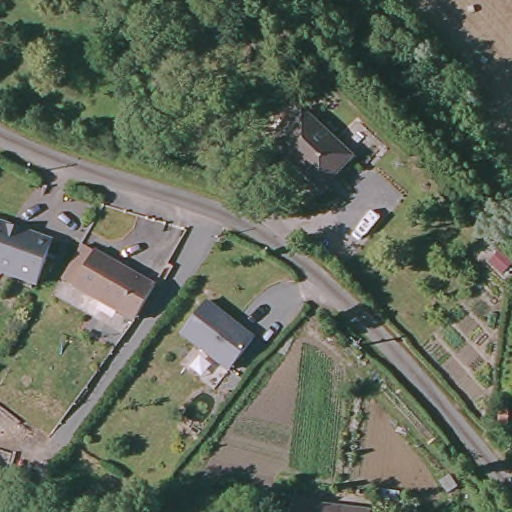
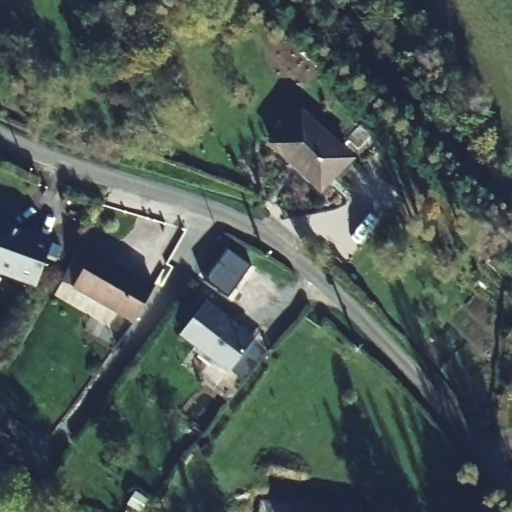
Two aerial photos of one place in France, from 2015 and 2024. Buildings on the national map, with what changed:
unchanged [(302,110),(347,157),(321,187),(275,140),(302,110)]
unchanged [(0,275),(0,227),(50,247),(33,288),(0,275)]
new [(202,281),(225,249),(250,266),(227,299),(202,281)]
unchanged [(103,263),(150,290),(130,325),(92,303),(70,291),(90,256),(103,263)]
unchanged [(227,371),(178,336),(202,304),(251,340),(227,371)]
unchanged [(373,512),(283,512),(283,505),(299,507),(300,501),(373,510),(373,512)]
unchanged [(149,512),(140,512),(144,508),(149,512)]

